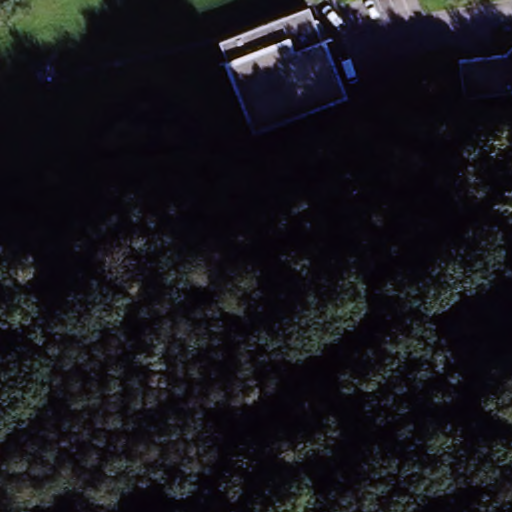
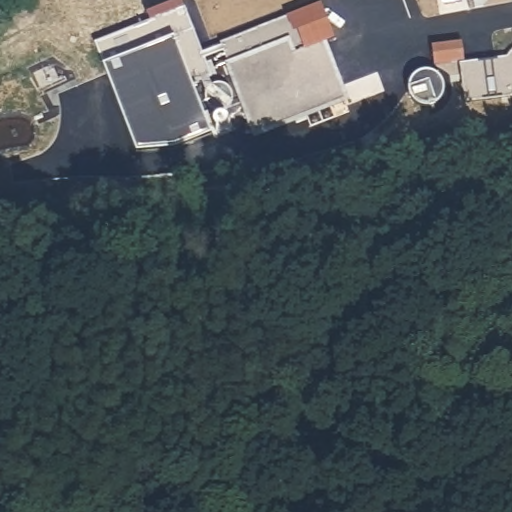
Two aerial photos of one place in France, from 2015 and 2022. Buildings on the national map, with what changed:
new [(206,75),(212,90),(220,87),(227,89),(232,91),(236,99),(235,106),(231,111),(225,114),(219,114),(226,133),(177,155),(152,155),(103,96),(88,63),(98,61),(92,40),(193,6),(219,71),(206,75)]
unchanged [(222,41),(312,15),(340,106),(249,131),(222,41)]

